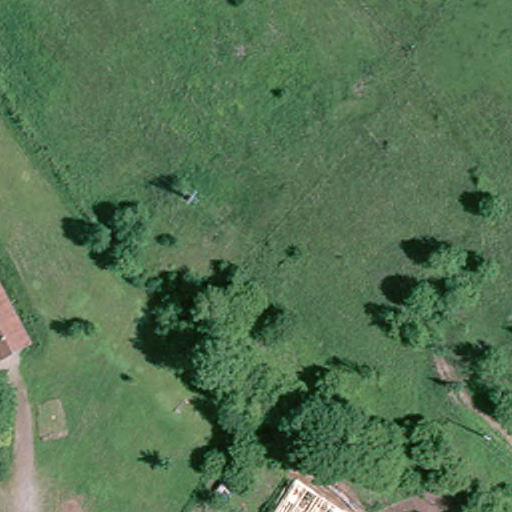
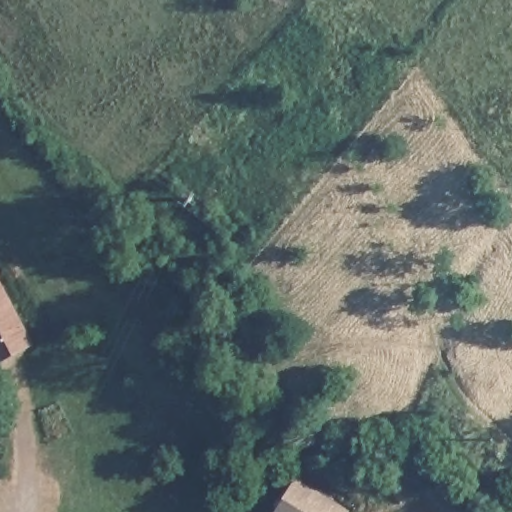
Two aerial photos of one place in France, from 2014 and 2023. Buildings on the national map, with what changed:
unchanged [(11,302),(0,308),(0,284),(11,302)]
unchanged [(11,302),(31,343),(0,358),(0,308),(11,302)]
new [(350,510),(348,512),(273,512),(295,477),(350,510)]

